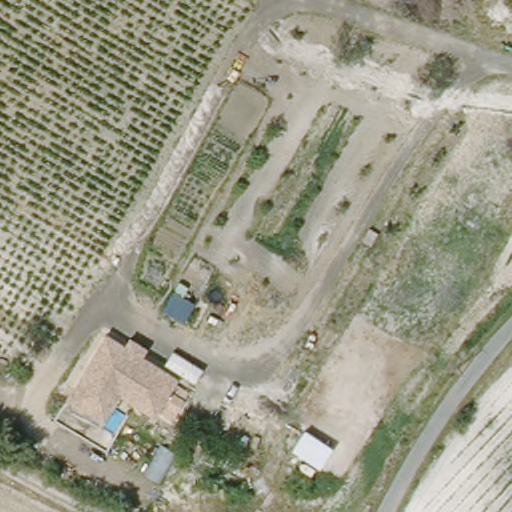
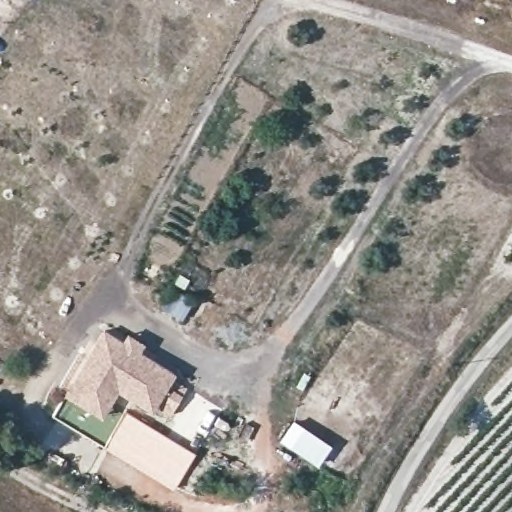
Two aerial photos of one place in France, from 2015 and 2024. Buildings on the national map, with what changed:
unchanged [(105,331),(122,341),(125,334),(147,347),(144,355),(175,376),(152,412),(119,395),(115,403),(125,410),(102,447),(53,417),(62,393),(105,331)]
new [(125,410),(195,452),(174,489),(102,447),(125,410)]
unchanged [(289,447),(303,426),(332,444),(317,465),(289,447)]

